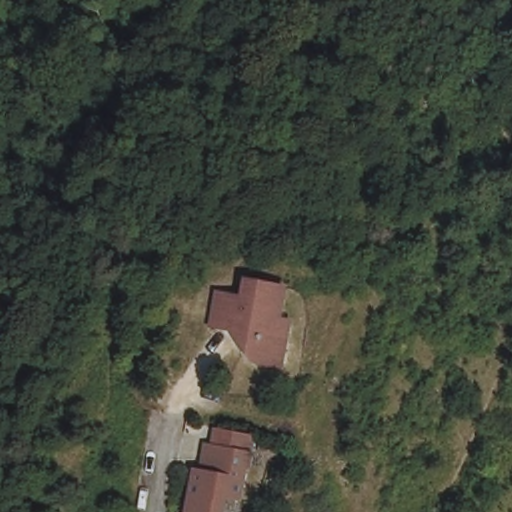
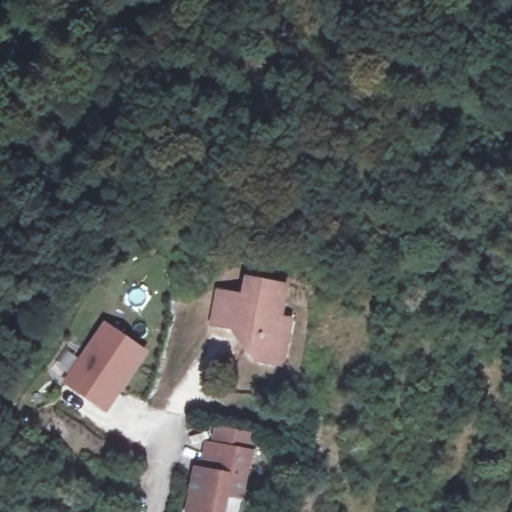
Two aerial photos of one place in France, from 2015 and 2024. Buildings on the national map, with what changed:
unchanged [(289,336),(284,363),(254,358),(248,350),(251,335),(248,330),(213,324),(219,291),(245,296),(248,278),(286,285),(281,317),(291,319),(289,336)]
new [(103,321),(148,351),(108,414),(63,383),(103,321)]
unchanged [(193,467),(201,469),(202,461),(206,442),(231,446),(231,441),(244,443),(243,449),(248,450),(239,495),(226,492),(222,512),(185,512),(193,467)]

